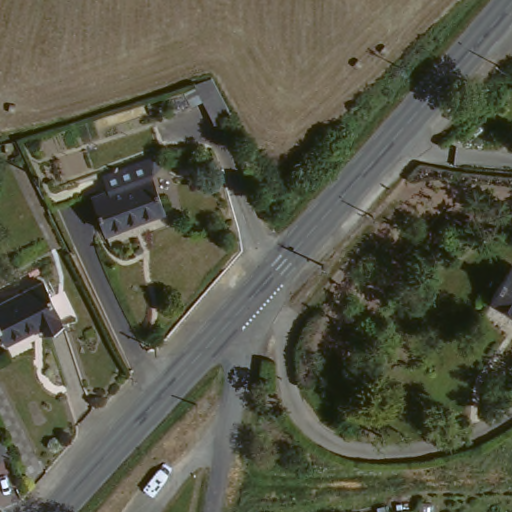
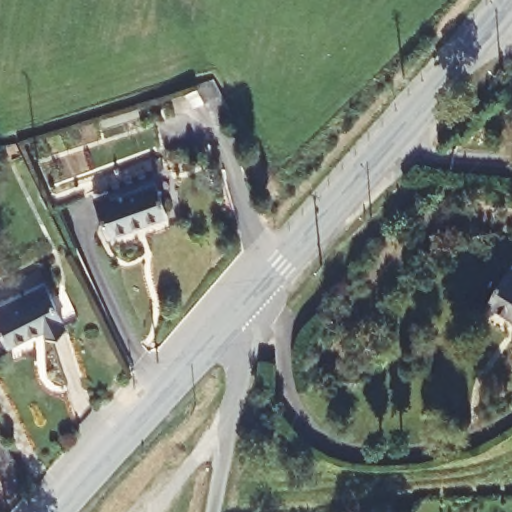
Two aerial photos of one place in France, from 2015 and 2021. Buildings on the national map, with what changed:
unchanged [(225,105),(209,109),(202,88),(190,91),(185,70),(209,64),(219,85),(225,105)]
unchanged [(106,231),(95,191),(109,187),(105,168),(158,158),(169,168),(160,172),(156,174),(165,215),(106,231)]
unchanged [(0,239),(0,232),(2,238),(0,239)]
unchanged [(491,291),(512,262),(512,306),(491,291)]
unchanged [(40,322),(3,337),(0,329),(0,296),(46,277),(67,326),(45,335),(40,322)]

